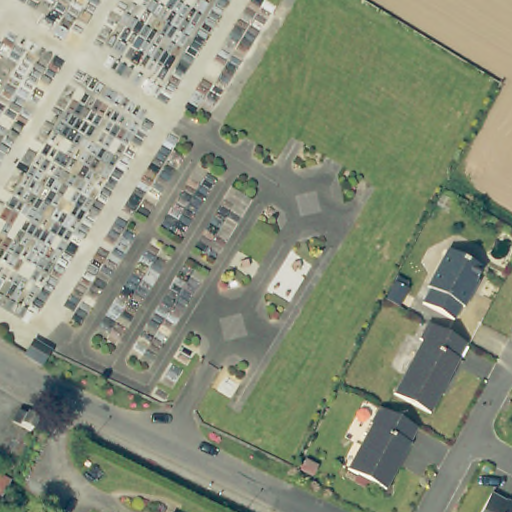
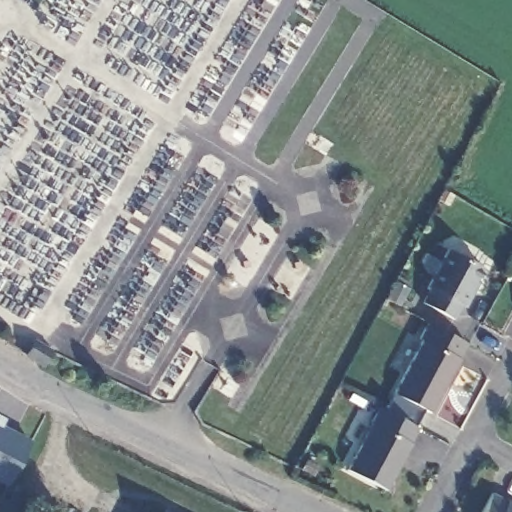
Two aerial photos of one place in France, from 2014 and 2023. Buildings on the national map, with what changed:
unchanged [(422,302),(429,288),(427,287),(447,249),(481,268),(469,290),(472,291),(463,307),(461,305),(453,319),(422,302)]
unchanged [(458,359),(459,360),(430,413),(393,393),(423,339),(419,337),(427,322),(428,323),(466,343),(458,359)]
unchanged [(25,356),(34,341),(51,351),(42,366),(25,356)]
unchanged [(409,443),(410,443),(385,489),(347,469),(371,423),(370,422),(378,407),(408,423),(417,428),(409,443)]
demolished [(31,431),(13,421),(19,410),(36,420),(31,431)]
new [(6,418),(2,426),(31,442),(7,486),(0,483),(0,415),(6,418)]
demolished [(11,475),(0,495),(0,469),(11,475)]
unchanged [(506,501),(507,500),(512,503),(512,512),(481,512),(491,493),(506,501)]

